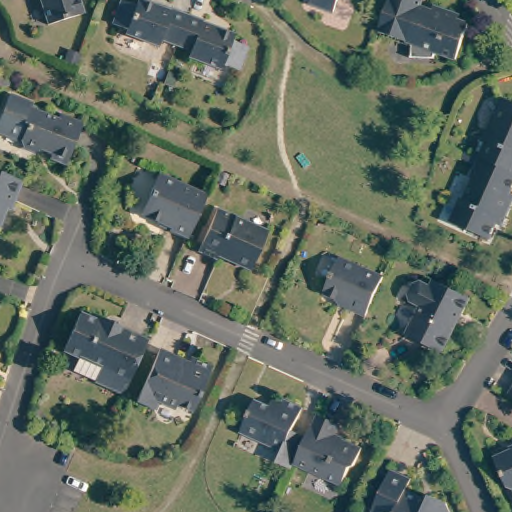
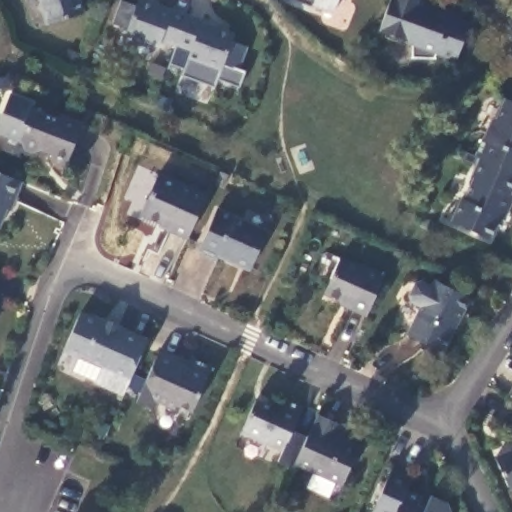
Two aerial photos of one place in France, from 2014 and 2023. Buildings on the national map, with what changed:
unchanged [(78,0),(79,1),(74,2),(79,16),(47,26),(39,0),(78,0)]
unchanged [(160,41),(158,47),(124,35),(126,31),(111,25),(120,2),(135,7),(138,0),(169,12),(170,11),(186,17),(180,34),(175,47),(160,41)]
unchanged [(309,0),(336,0),(333,9),(309,0)]
unchanged [(421,0),(420,2),(432,7),(434,2),(454,9),(452,14),(468,20),(456,55),(436,48),(434,54),(413,64),(406,51),(374,40),(388,0),(421,0)]
unchanged [(180,34),(186,17),(202,22),(202,24),(234,36),(231,42),(246,47),(237,71),(222,66),(220,71),(188,59),(190,52),(175,47),(180,34)]
unchanged [(68,125),(69,120),(91,129),(75,171),(59,164),(61,160),(50,155),(44,158),(33,154),(29,147),(4,137),(19,100),(41,109),(39,114),(68,125)]
unchanged [(483,138),(484,139),(493,121),(497,119),(506,100),(512,103),(512,174),(489,164),(479,159),(474,157),(483,138)]
unchanged [(489,164),(512,174),(512,190),(510,195),(512,196),(499,226),(496,224),(489,240),(451,223),(459,203),(463,201),(473,180),(471,179),(479,159),(489,164)]
unchanged [(22,183),(10,212),(7,211),(0,228),(0,174),(0,175),(22,183)]
unchanged [(158,175),(205,197),(205,199),(187,240),(169,232),(169,230),(144,218),(150,203),(149,197),(158,175)]
unchanged [(266,232),(249,270),(218,256),(216,261),(197,252),(216,210),(266,232)]
unchanged [(383,277),(366,316),(349,308),(349,306),(324,294),(340,257),(383,277)]
unchanged [(470,299),(462,315),(459,316),(454,326),(455,328),(442,354),(403,334),(416,308),(407,304),(404,297),(410,286),(422,282),(431,286),(433,281),(470,299)]
unchanged [(63,346),(79,309),(88,312),(89,308),(104,315),(102,319),(117,326),(118,323),(146,336),(123,388),(73,367),(79,352),(63,346)]
unchanged [(178,358),(175,362),(187,367),(190,357),(212,367),(194,408),(178,402),(175,408),(159,401),(154,410),(136,402),(159,350),(178,358)]
unchanged [(512,385),(512,400),(505,396),(512,385)]
unchanged [(269,412),(274,402),(283,407),(284,405),(302,412),(292,436),(307,442),(294,470),(292,474),(277,467),(282,456),(240,438),(255,405),(269,412)]
unchanged [(339,429),(334,441),(362,453),(354,470),(349,472),(341,491),(294,470),(307,442),(317,419),(339,429)]
unchanged [(508,483),(494,453),(512,445),(512,485),(508,483)]
unchanged [(411,478),(405,491),(421,497),(417,507),(423,509),(429,495),(447,502),(450,512),(372,512),(372,511),(391,469),(411,478)]

